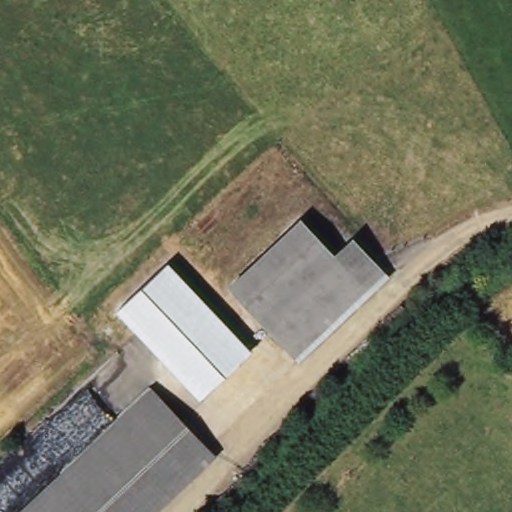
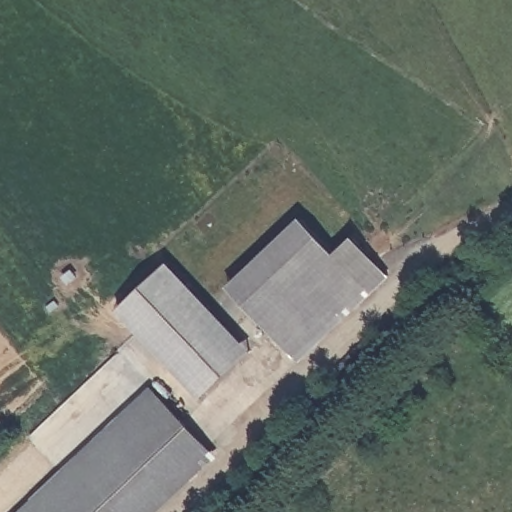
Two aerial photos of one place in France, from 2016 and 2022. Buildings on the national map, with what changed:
unchanged [(228,292),(299,224),(332,258),(259,327),(228,292)]
unchanged [(351,280),(332,258),(354,237),(390,275),(364,293),(351,280)]
unchanged [(332,258),(351,280),(280,348),(259,327),(332,258)]
unchanged [(252,351),(201,399),(119,311),(168,263),(252,351)]
unchanged [(364,293),(291,361),(280,348),(351,280),(364,293)]
unchanged [(204,451),(141,512),(22,512),(149,392),(204,451)]
unchanged [(213,460),(157,512),(141,512),(204,451),(213,460)]

